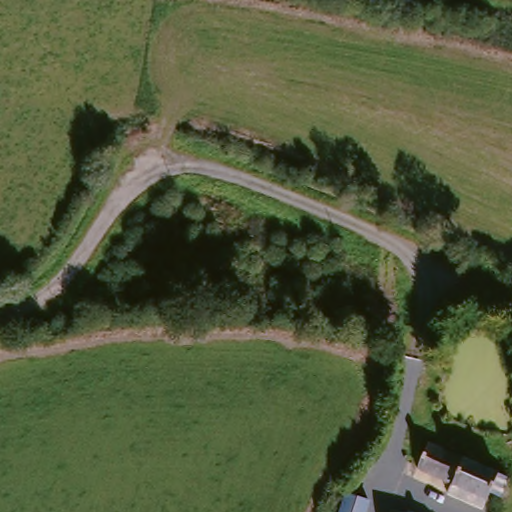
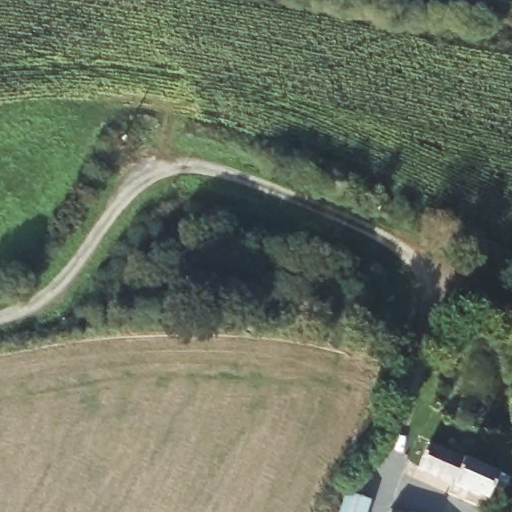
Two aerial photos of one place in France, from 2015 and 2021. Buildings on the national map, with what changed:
unchanged [(429,446),(490,474),(488,479),(479,501),(416,472),(429,446)]
unchanged [(365,508),(363,512),(345,512),(347,502),(365,508)]

